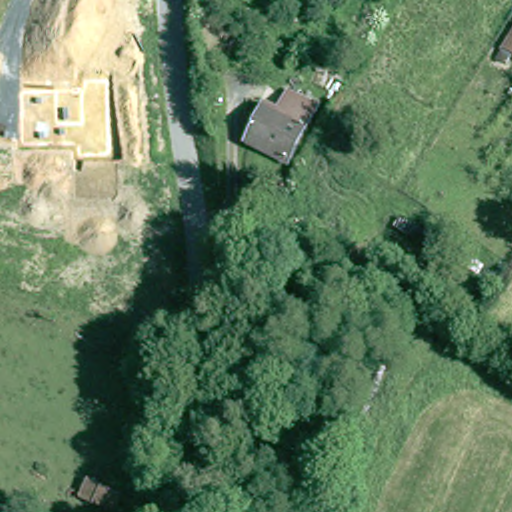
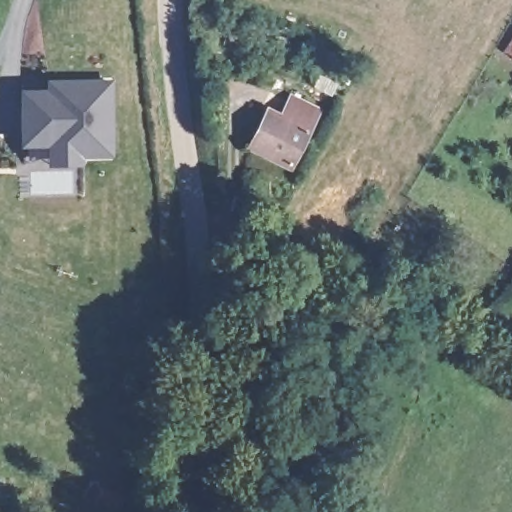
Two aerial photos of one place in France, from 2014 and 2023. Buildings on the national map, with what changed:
new [(45,90),(45,81),(112,80),(114,159),(83,160),(83,168),(48,168),(48,150),(19,151),(19,90),(45,90)]
unchanged [(247,149),(261,121),(274,126),(288,95),(323,111),(294,170),(247,149)]
unchanged [(82,496),(88,481),(122,495),(116,511),(82,496)]

